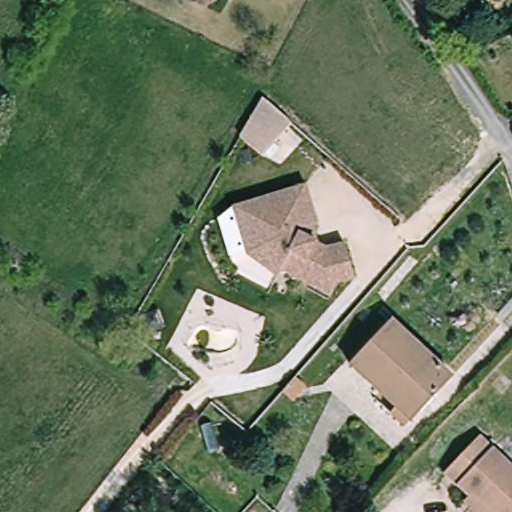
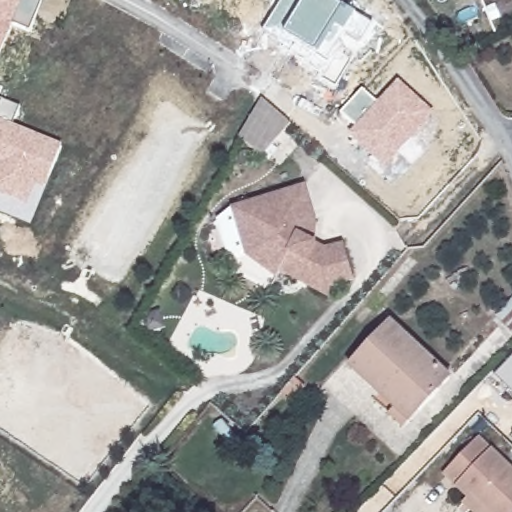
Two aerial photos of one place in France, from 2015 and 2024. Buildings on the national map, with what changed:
new [(13,23),(0,51),(0,0),(36,0),(41,1),(30,30),(13,23)]
unchanged [(190,0),(210,0),(207,8),(190,0)]
new [(329,59),(319,54),(297,40),(292,49),(266,31),(286,0),(299,0),(304,3),(305,0),(331,0),(356,15),(373,24),(362,42),(345,30),(329,59)]
new [(278,0),(279,0),(279,1),(278,0)]
new [(434,112),(383,168),(349,136),(356,126),(341,113),(362,88),(378,103),(399,79),(434,112)]
unchanged [(281,108),(294,119),(264,152),(240,131),(264,94),(281,108)]
new [(3,101),(19,106),(13,124),(62,145),(44,188),(37,185),(27,205),(0,194),(0,108),(3,101)]
unchanged [(248,257),(234,209),(306,188),(317,227),(316,245),(327,249),(346,243),(356,279),(341,284),(318,310),(279,275),(275,280),(248,257)]
unchanged [(501,317),(512,306),(512,327),(511,328),(501,317)]
unchanged [(394,415),(399,409),(352,366),(393,322),(453,377),(412,421),(407,426),(394,415)]
new [(512,356),(512,391),(495,376),(512,356)]
unchanged [(473,501),(448,477),(485,439),(512,466),(512,512),(475,512),(468,505),(473,501)]

